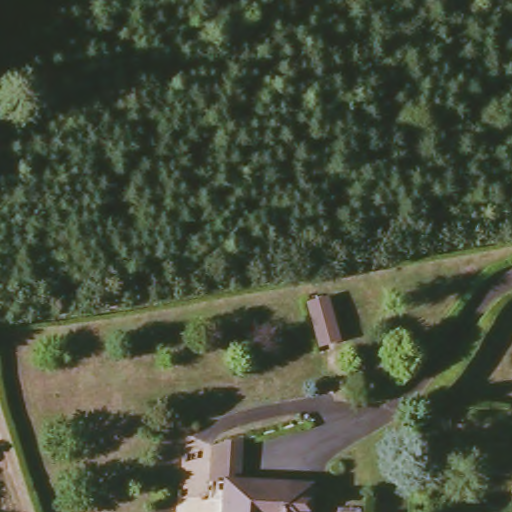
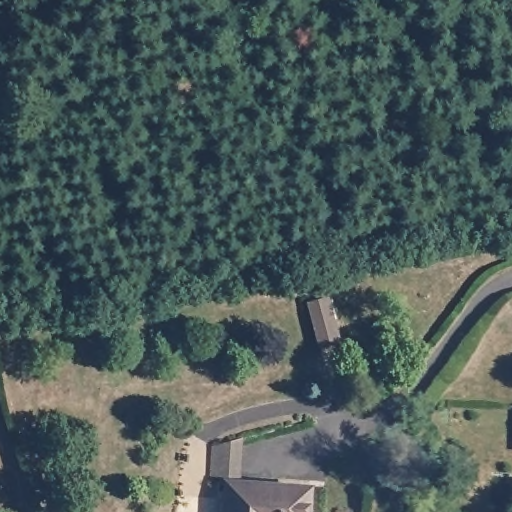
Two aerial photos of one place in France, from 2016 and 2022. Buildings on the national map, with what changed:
unchanged [(344,338),(321,347),(307,299),(334,294),(344,338)]
unchanged [(306,483),(314,482),(314,488),(315,512),(223,512),(224,487),(224,478),(215,479),(215,444),(245,440),(245,476),(306,478),(306,483)]

